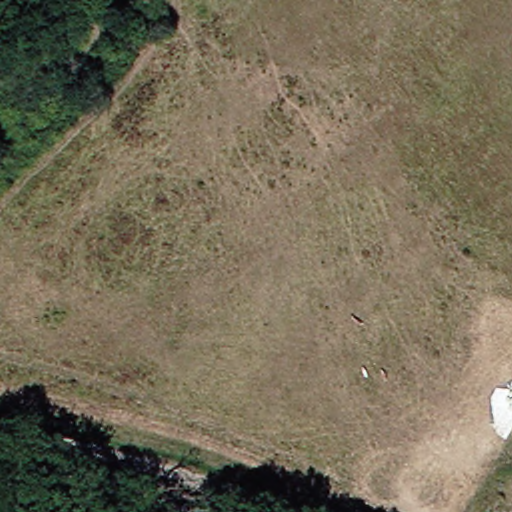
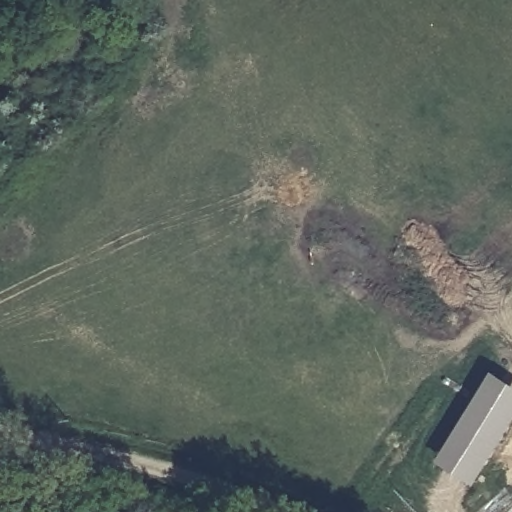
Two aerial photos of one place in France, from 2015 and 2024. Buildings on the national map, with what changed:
new [(490,375),(512,388),(512,419),(472,487),(436,463),(490,375)]

